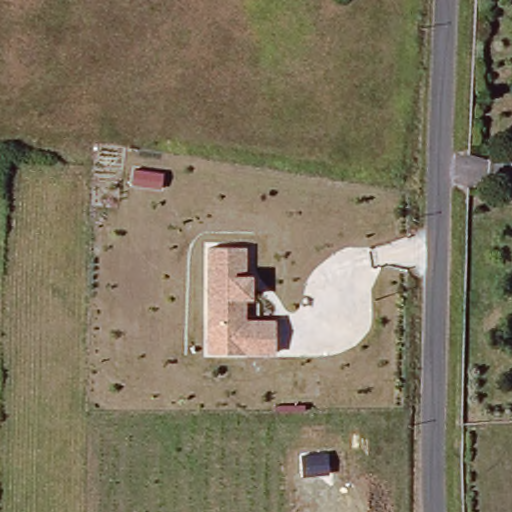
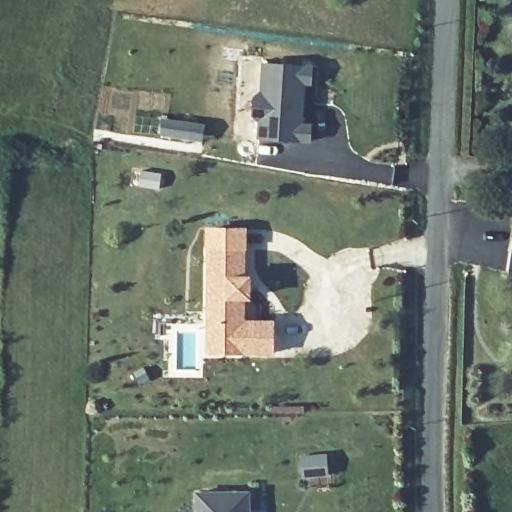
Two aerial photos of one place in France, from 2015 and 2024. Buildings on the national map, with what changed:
new [(261,62),(311,65),(310,82),(303,82),(301,122),(310,124),(310,139),(257,137),(261,62)]
unchanged [(206,246),(245,247),(244,276),(250,277),(250,303),(244,303),(244,321),(273,322),(273,357),(204,357),(206,246)]
new [(327,455),(328,474),(302,476),(301,457),(327,455)]
new [(197,490),(249,491),(249,512),(197,512),(197,490)]

